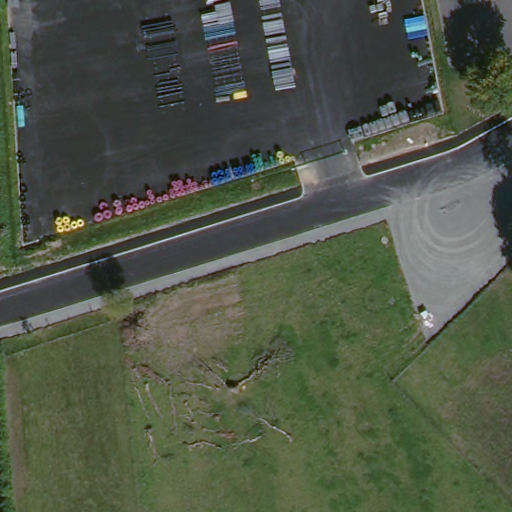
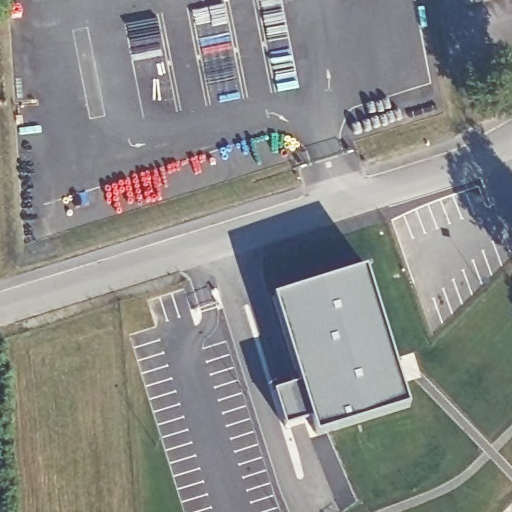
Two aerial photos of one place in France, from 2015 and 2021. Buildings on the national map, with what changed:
new [(367,270),(409,409),(316,437),(310,421),(300,385),(274,297),(367,270)]
new [(300,385),(310,421),(284,429),(273,393),(300,385)]

